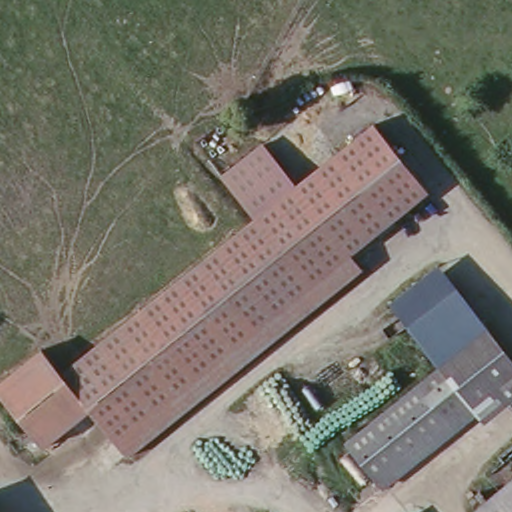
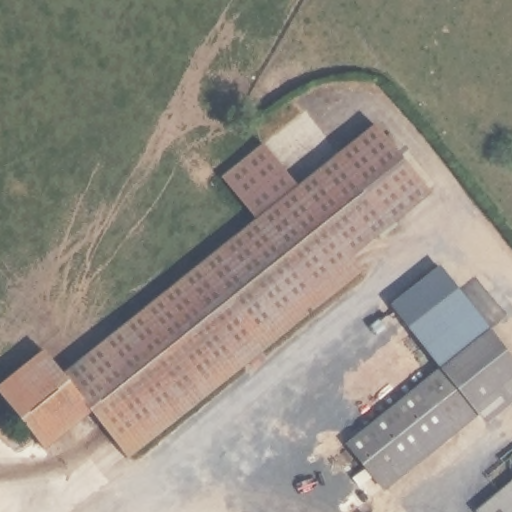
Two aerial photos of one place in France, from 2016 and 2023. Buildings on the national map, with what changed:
unchanged [(259,211),(298,179),(341,144),(376,115),(430,182),(395,210),(399,215),(383,228),(379,223),(352,245),(365,261),(129,452),(91,404),(62,369),(64,369),(259,211)]
unchanged [(298,179),(259,211),(225,169),(265,137),(298,179)]
unchanged [(445,371),(391,304),(438,267),(491,334),(445,371)]
unchanged [(491,334),(512,360),(512,409),(490,427),(481,416),(445,371),(491,334)]
unchanged [(62,369),(91,404),(44,442),(0,387),(0,380),(45,344),(64,369),(62,369)]
unchanged [(481,416),(388,489),(352,445),(445,371),(481,416)]
unchanged [(512,479),(512,512),(483,512),(478,506),(512,479)]

